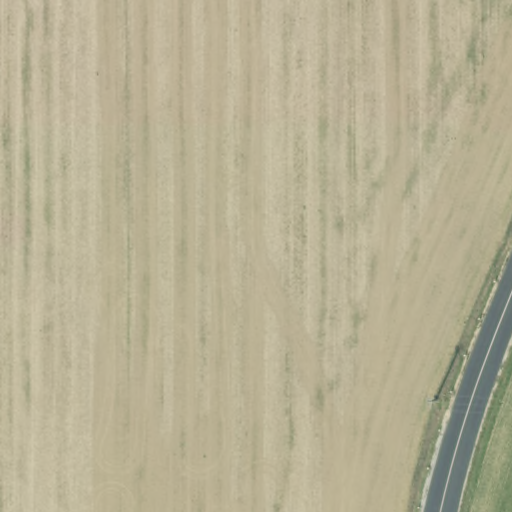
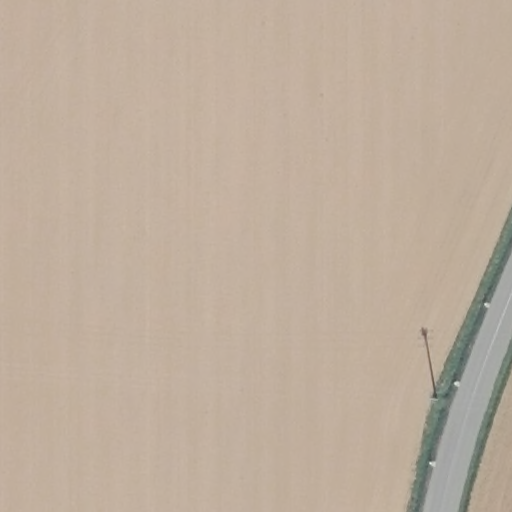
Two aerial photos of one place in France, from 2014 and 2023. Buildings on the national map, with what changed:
[]

